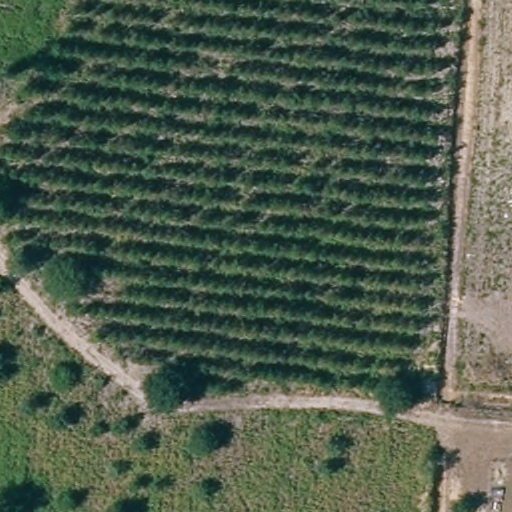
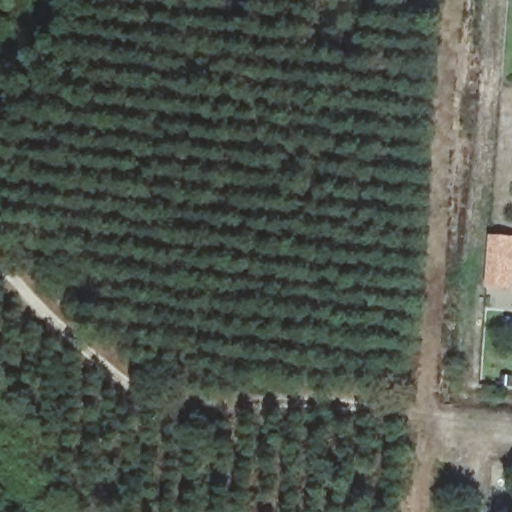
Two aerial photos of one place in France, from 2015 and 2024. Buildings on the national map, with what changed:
new [(488,288),(492,237),(512,238),(512,290),(488,288)]

